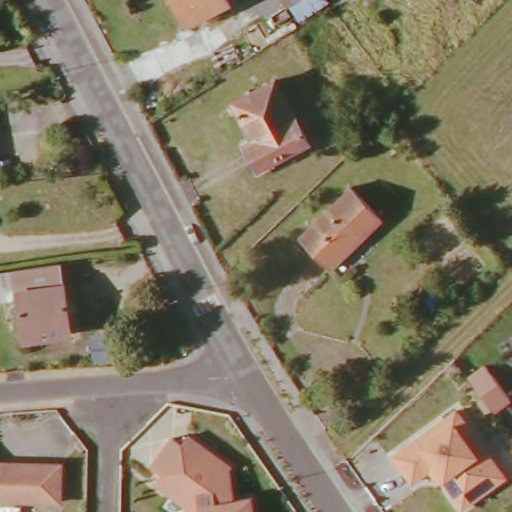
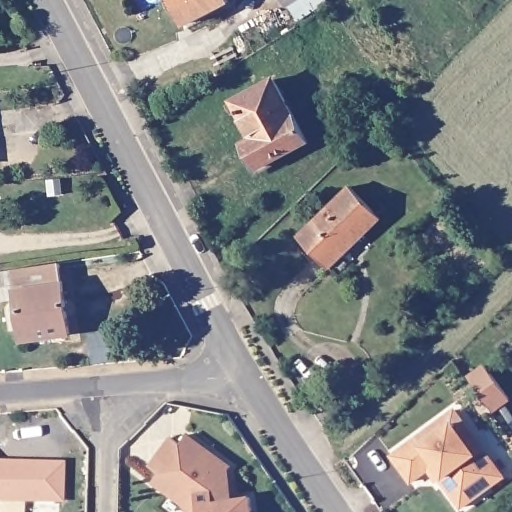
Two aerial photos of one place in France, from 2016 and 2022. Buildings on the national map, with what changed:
unchanged [(230,4),(189,26),(175,0),(229,0),(230,4)]
unchanged [(336,6),(303,27),(288,0),(333,0),(336,6)]
unchanged [(282,82),(313,144),(267,171),(255,147),(269,140),(248,100),(282,82)]
unchanged [(354,192),(385,226),(331,275),(301,241),(354,192)]
unchanged [(73,337),(27,345),(21,303),(0,306),(0,277),(65,266),(73,337)]
unchanged [(487,366),(512,403),(512,404),(495,416),(467,380),(487,366)]
unchanged [(430,471),(413,483),(393,458),(455,410),(475,435),(505,473),(490,487),(465,507),(443,480),(438,483),(430,471)]
unchanged [(155,485),(162,475),(153,469),(174,438),(183,445),(189,436),(231,467),(230,470),(235,501),(250,498),(253,512),(185,512),(188,508),(155,485)]
unchanged [(20,501),(0,500),(0,463),(21,463),(20,501)]
unchanged [(63,464),(62,502),(20,501),(21,463),(63,464)]

